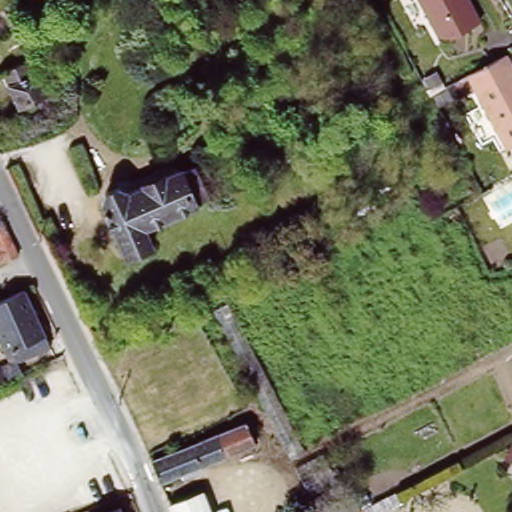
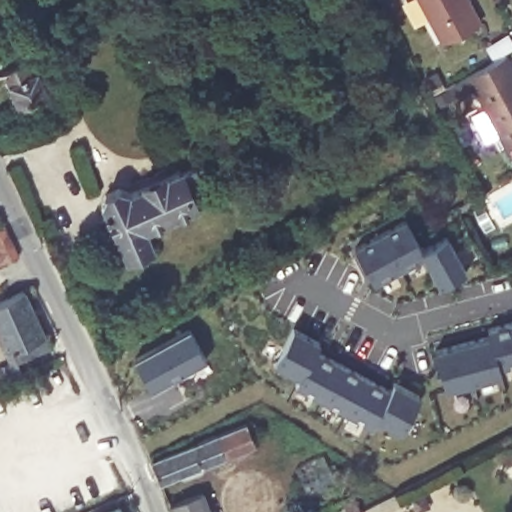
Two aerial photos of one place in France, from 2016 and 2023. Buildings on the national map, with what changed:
unchanged [(476,27),(438,45),(417,0),(463,0),(476,27)]
demolished [(17,34),(35,72),(32,74),(34,81),(30,84),(32,90),(38,87),(47,107),(18,120),(2,86),(0,87),(0,86),(0,24),(5,21),(12,35),(17,34)]
unchanged [(512,66),(512,149),(506,152),(470,78),(508,58),(512,66)]
new [(7,86),(2,73),(28,61),(33,72),(38,70),(50,95),(18,109),(7,86)]
unchanged [(172,180),(187,174),(203,206),(189,213),(141,236),(147,251),(121,263),(97,212),(101,202),(113,197),(123,200),(167,180),(171,177),(172,180)]
new [(372,280),(354,246),(405,219),(422,250),(447,236),(465,269),(438,283),(423,256),(372,280)]
unchanged [(0,225),(4,222),(20,253),(0,264),(0,225)]
unchanged [(44,336),(12,349),(11,347),(5,350),(0,338),(0,287),(22,280),(44,336)]
new [(498,366),(500,373),(445,387),(434,349),(490,334),(488,327),(512,321),(512,363),(498,366)]
new [(400,430),(375,416),(371,425),(294,385),(299,375),(273,362),(293,326),(320,340),(316,347),(390,387),(395,380),(420,395),(400,430)]
new [(152,389),(134,357),(189,327),(205,359),(152,389)]
demolished [(0,369),(0,363),(2,368),(0,369)]
unchanged [(179,483),(176,479),(157,487),(148,465),(247,423),(250,432),(245,434),(250,447),(195,471),(197,476),(179,483)]
unchanged [(311,494),(297,466),(323,453),(332,470),(338,481),(311,494)]
new [(360,508),(397,490),(403,503),(386,512),(331,512),(355,498),(360,508)]
unchanged [(208,512),(171,512),(169,508),(202,497),(208,512)]
unchanged [(122,512),(108,512),(120,507),(122,512)]

